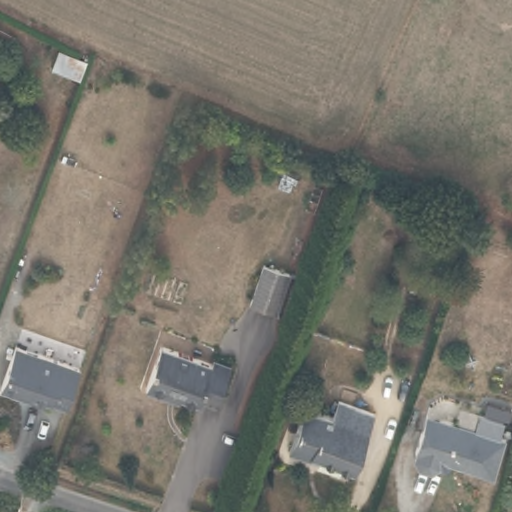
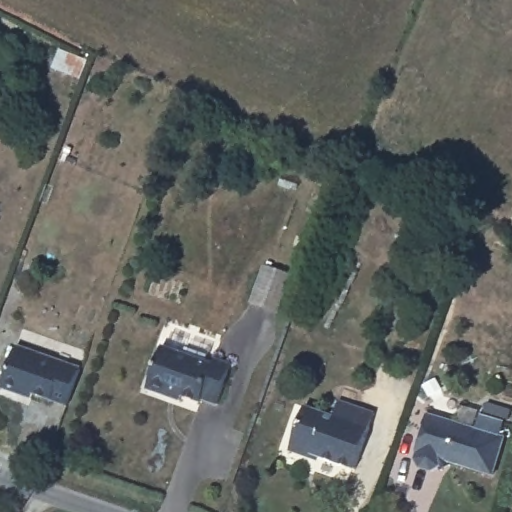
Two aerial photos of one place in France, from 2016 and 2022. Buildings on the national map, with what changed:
unchanged [(91,74),(65,63),(74,46),(99,57),(91,74)]
unchanged [(407,213),(416,187),(440,197),(431,222),(407,213)]
unchanged [(495,245),(501,223),(512,228),(512,253),(495,245)]
unchanged [(255,297),(265,264),(292,273),(280,306),(255,297)]
unchanged [(19,393),(15,391),(0,385),(16,346),(30,352),(80,372),(66,404),(33,390),(30,398),(19,393)]
unchanged [(156,352),(210,371),(212,363),(230,370),(217,408),(199,402),(197,407),(165,396),(164,401),(141,393),(156,352)]
unchanged [(313,458),(310,462),(284,452),(300,408),(332,419),(337,403),(361,413),(371,417),(352,472),(340,468),(313,458)]
unchanged [(495,435),(500,436),(487,473),(440,459),(429,468),(416,464),(412,456),(414,449),(411,448),(423,411),(471,427),(475,413),(500,420),(495,435)]

